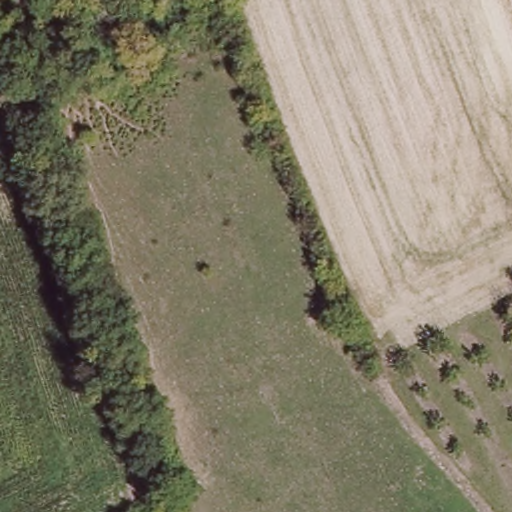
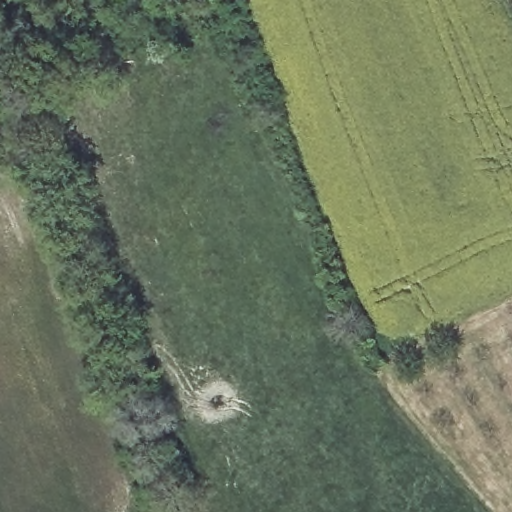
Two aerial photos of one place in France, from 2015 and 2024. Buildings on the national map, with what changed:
[]

